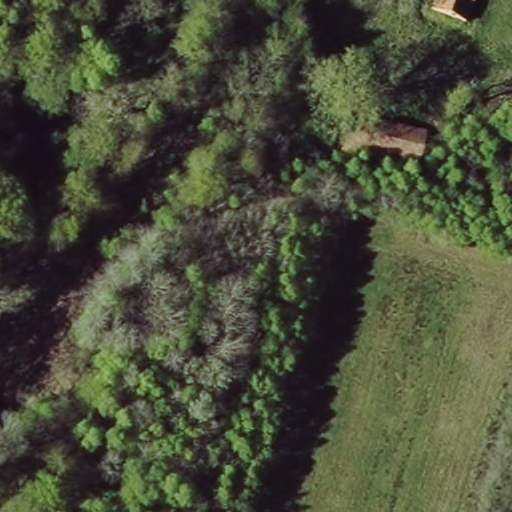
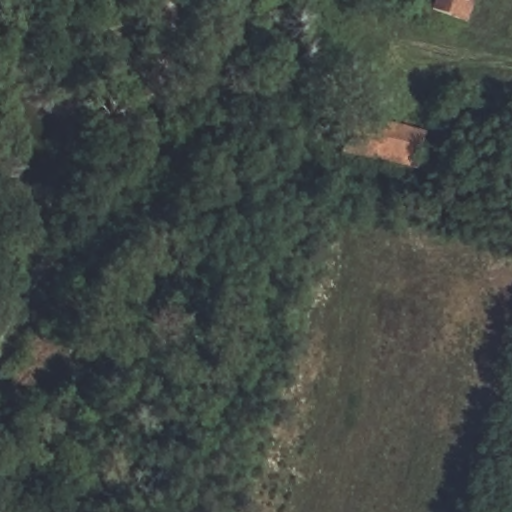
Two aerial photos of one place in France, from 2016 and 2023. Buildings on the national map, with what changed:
unchanged [(425,10),(427,4),(429,0),(471,0),(465,20),(425,10)]
unchanged [(418,165),(352,154),(357,121),(425,125),(418,165)]

